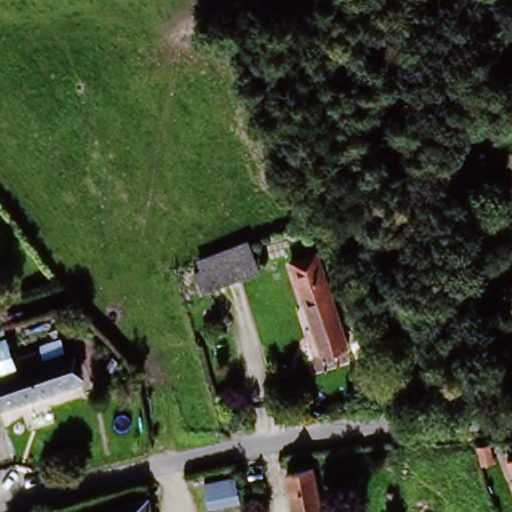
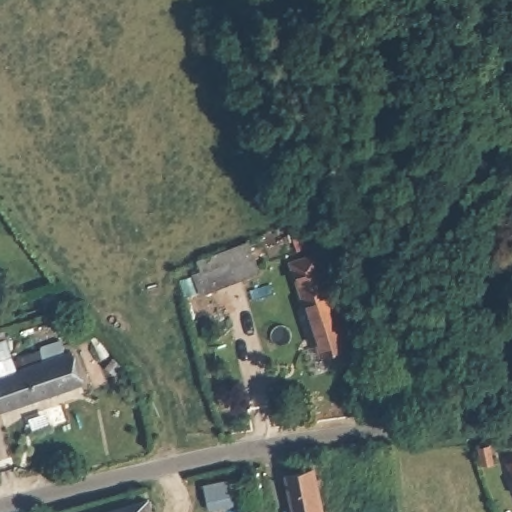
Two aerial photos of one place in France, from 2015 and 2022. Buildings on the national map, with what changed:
unchanged [(512,238),(512,264),(482,276),(472,253),(512,238)]
unchanged [(202,265),(250,246),(259,267),(210,287),(202,265)]
unchanged [(317,341),(296,263),(320,257),(342,333),(317,341)]
unchanged [(0,407),(0,358),(59,338),(75,383),(0,408),(0,407)]
unchanged [(512,462),(512,480),(505,463),(512,462)]
unchanged [(282,477),(319,465),(326,490),(315,493),(321,512),(291,512),(282,477)]
unchanged [(207,482),(235,477),(239,501),(210,507),(207,482)]
unchanged [(149,500),(151,512),(96,512),(149,500)]

